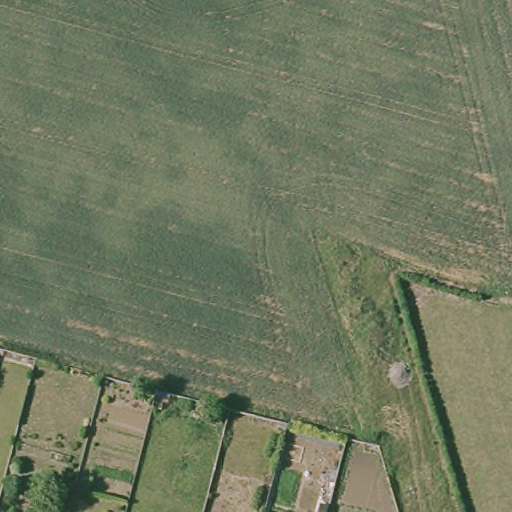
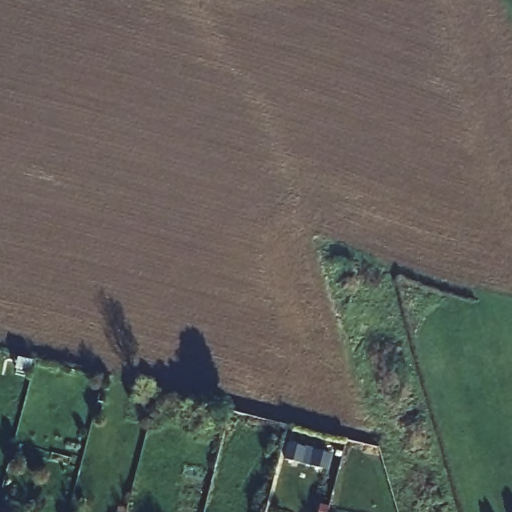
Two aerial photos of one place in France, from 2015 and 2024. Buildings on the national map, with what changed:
[]

